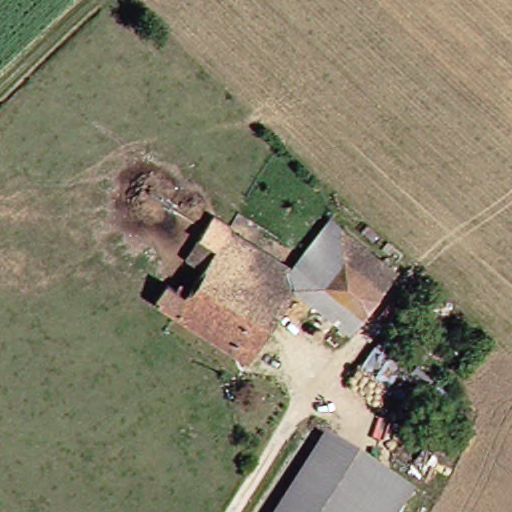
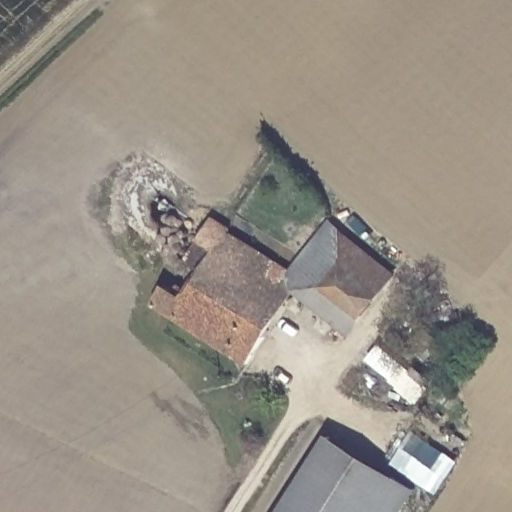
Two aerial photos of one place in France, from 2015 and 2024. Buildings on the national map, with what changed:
unchanged [(234,225),(231,230),(292,271),(326,222),(391,267),(348,329),(296,290),(247,361),(155,298),(169,278),(180,286),(184,281),(192,287),(206,266),(191,255),(203,237),(200,235),(216,211),(234,225)]
unchanged [(400,512),(285,512),(333,432),(416,486),(400,512)]
new [(455,462),(437,492),(392,463),(410,434),(455,462)]

